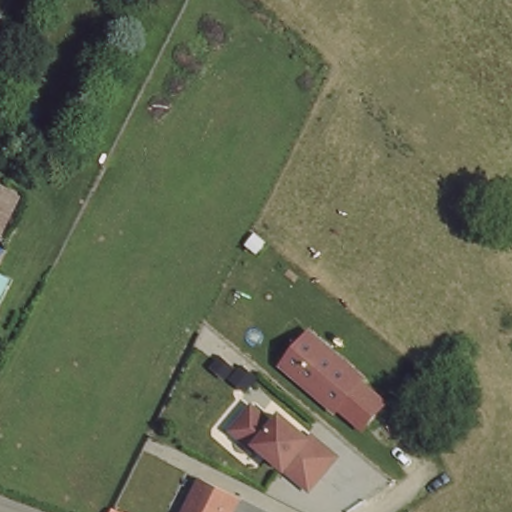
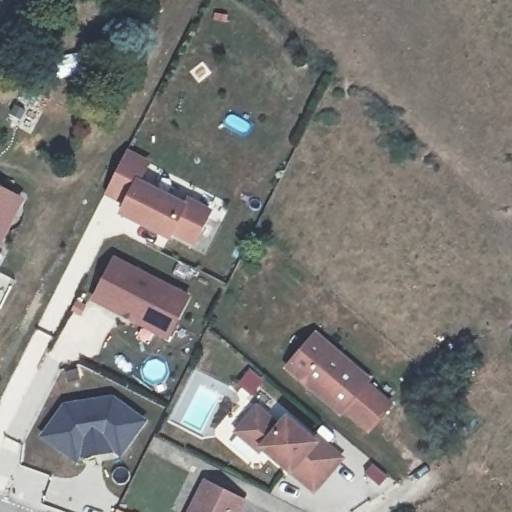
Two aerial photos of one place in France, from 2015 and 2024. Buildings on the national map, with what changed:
new [(125,154),(146,164),(136,183),(183,206),(186,201),(209,213),(193,244),(171,233),(168,239),(120,214),(124,204),(104,194),(125,154)]
unchanged [(20,205),(0,243),(0,195),(20,205)]
new [(113,261),(187,299),(167,339),(93,301),(113,261)]
unchanged [(311,326),(368,376),(363,381),(339,407),(284,362),(311,326)]
new [(240,383),(250,372),(260,381),(250,393),(240,383)]
new [(363,381),(394,404),(368,433),(339,407),(363,381)]
new [(61,402),(114,394),(146,421),(120,457),(115,452),(81,459),(76,465),(38,436),(61,402)]
unchanged [(255,401),(277,419),(285,410),(313,434),(316,430),(340,450),(313,482),(261,439),(258,443),(236,424),(255,401)]
unchanged [(208,474),(245,492),(234,512),(186,512),(208,474)]
new [(121,512),(116,512),(117,511),(121,512)]

